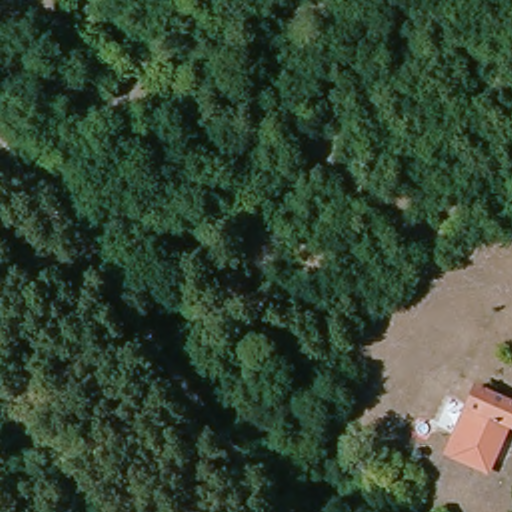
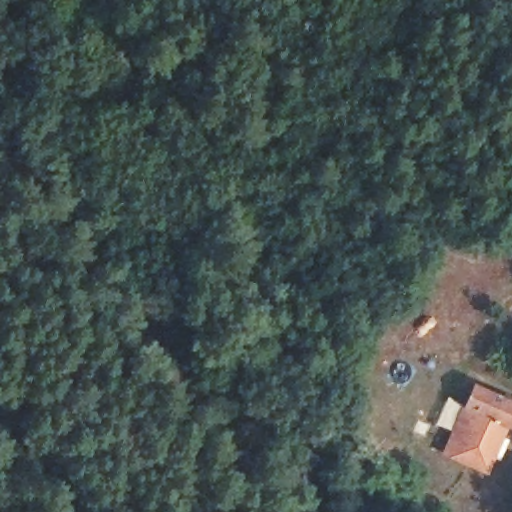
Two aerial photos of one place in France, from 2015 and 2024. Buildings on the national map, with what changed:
unchanged [(465,417),(456,413),(464,393),(503,406),(510,410),(500,430),(494,428),(465,417)]
unchanged [(447,458),(465,417),(494,428),(477,471),(447,458)]

